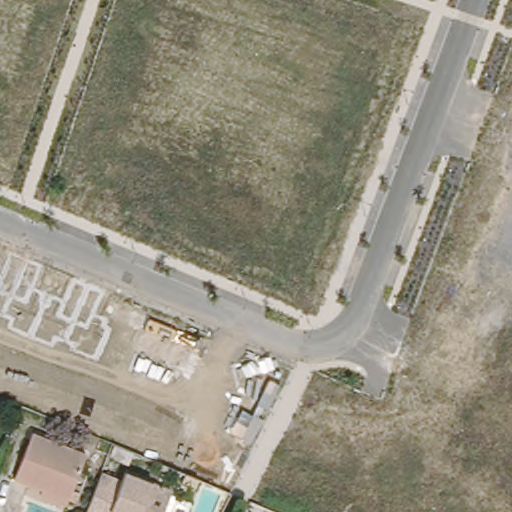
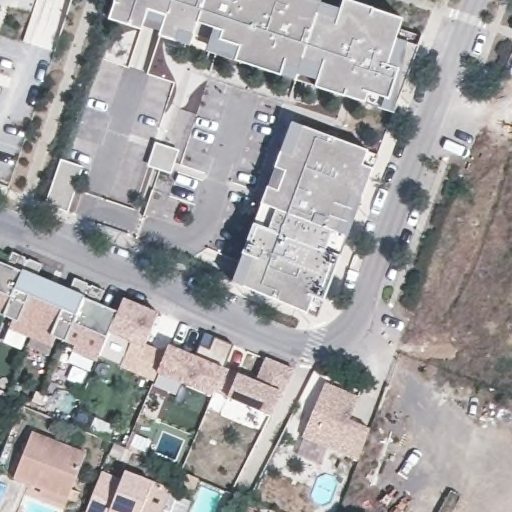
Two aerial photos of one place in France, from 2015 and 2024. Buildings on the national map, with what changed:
new [(383,109),(365,102),(315,87),(318,78),(300,73),(297,80),(208,52),(214,28),(198,23),(191,45),(160,36),(162,30),(144,25),(143,30),(110,19),(116,0),(322,0),(321,3),(341,9),(343,0),(348,0),(403,19),(396,39),(407,42),(418,48),(395,111),(383,109)]
new [(254,225),(262,204),(268,185),(271,180),(275,168),(286,137),(292,122),(301,126),(369,151),(364,166),(373,169),(362,200),(348,236),(341,256),(324,302),(314,298),(308,314),(242,286),(232,282),(238,267),(254,225)]
new [(61,159),(83,167),(67,213),(46,204),(61,159)]
unchanged [(74,352),(75,345),(56,338),(53,346),(9,330),(12,320),(0,316),(0,276),(2,277),(11,255),(40,265),(33,289),(65,300),(73,279),(104,291),(95,315),(106,320),(104,326),(111,329),(109,331),(97,360),(74,352)]
new [(157,373),(154,380),(121,366),(132,341),(109,331),(111,329),(123,298),(158,313),(145,345),(165,353),(157,373)]
new [(295,369),(282,392),(272,414),(228,395),(215,389),(212,396),(157,373),(165,353),(169,345),(195,356),(200,346),(211,351),(216,339),(233,346),(223,368),(257,381),(266,358),(295,369)]
new [(325,384),(358,398),(348,421),(369,429),(358,460),(302,436),(325,384)]
unchanged [(39,494),(42,488),(13,477),(32,431),(87,453),(72,490),(81,493),(77,502),(69,498),(67,505),(39,494)]
unchanged [(117,479),(120,471),(167,489),(166,492),(188,501),(183,512),(80,512),(97,471),(117,479)]

